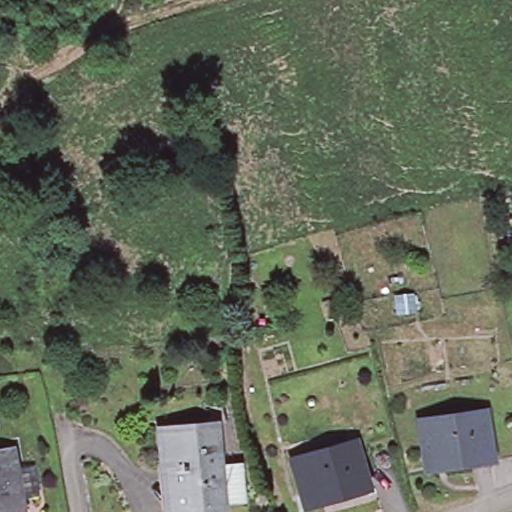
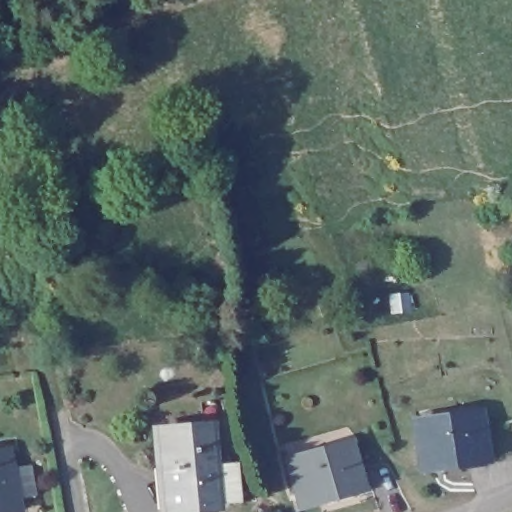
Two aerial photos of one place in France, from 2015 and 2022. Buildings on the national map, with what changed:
unchanged [(487,454),(427,472),(412,427),(473,408),(487,454)]
unchanged [(210,507),(162,510),(157,469),(152,468),(149,433),(202,428),(205,465),(228,463),(230,481),(232,505),(210,507)]
unchanged [(366,485),(305,507),(288,465),(349,441),(366,485)]
unchanged [(18,510),(1,512),(0,512),(0,454),(9,452),(18,510)]

